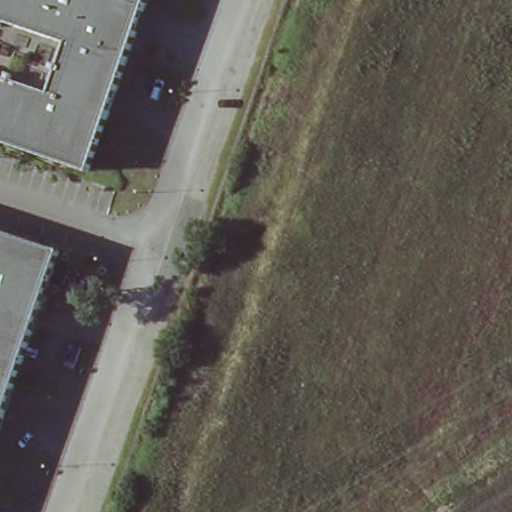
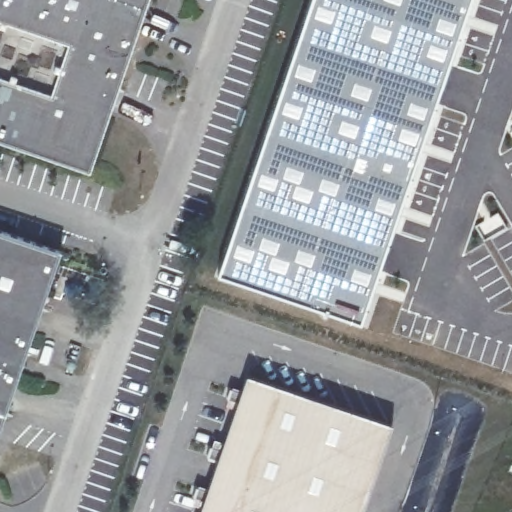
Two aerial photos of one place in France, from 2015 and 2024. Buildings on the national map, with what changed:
unchanged [(90,171),(0,140),(0,0),(148,0),(90,171)]
new [(309,0),(472,0),(361,324),(217,275),(309,0)]
unchanged [(62,252),(0,431),(0,230),(62,252)]
new [(364,512),(201,512),(247,375),(394,425),(364,512)]

